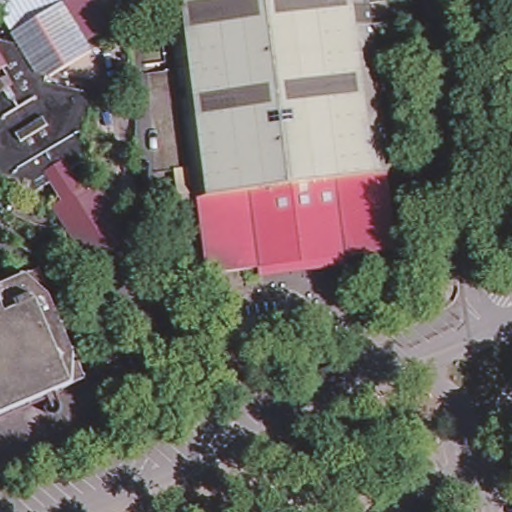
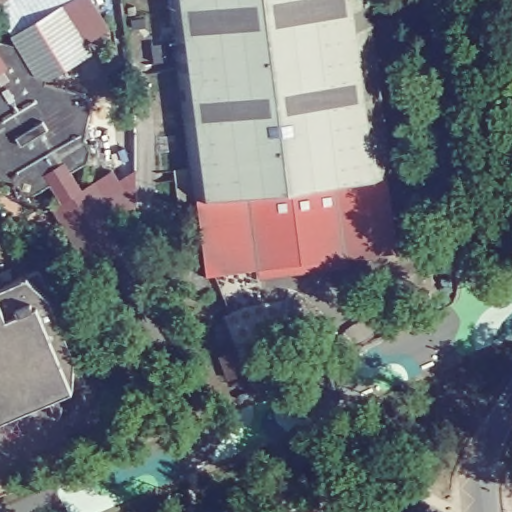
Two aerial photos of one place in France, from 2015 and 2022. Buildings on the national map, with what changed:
unchanged [(0,0),(11,0),(0,9),(0,0)]
unchanged [(92,0),(108,29),(86,42),(93,52),(49,79),(39,76),(20,48),(13,35),(71,0),(92,0)]
unchanged [(203,206),(197,207),(168,0),(374,0),(398,179),(392,180),(402,255),(213,282),(203,206)]
unchanged [(86,96),(94,109),(87,143),(92,152),(90,165),(35,197),(23,194),(18,185),(0,180),(0,45),(2,44),(20,48),(39,76),(49,79),(48,87),(86,96)]
unchanged [(95,183),(131,242),(85,268),(51,210),(95,183)]
unchanged [(38,267),(84,376),(59,386),(61,390),(0,415),(0,282),(38,267)]

